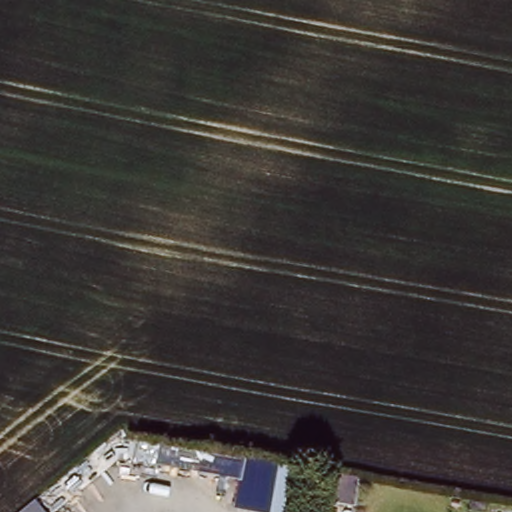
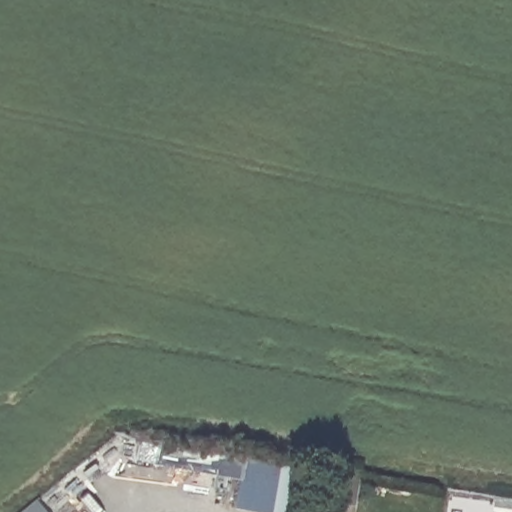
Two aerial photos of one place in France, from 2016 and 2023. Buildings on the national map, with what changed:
unchanged [(272,506),(237,500),(244,453),(280,458),(272,506)]
unchanged [(308,463),(301,511),(272,506),(280,458),(308,463)]
unchanged [(48,512),(24,512),(38,501),(48,512)]

